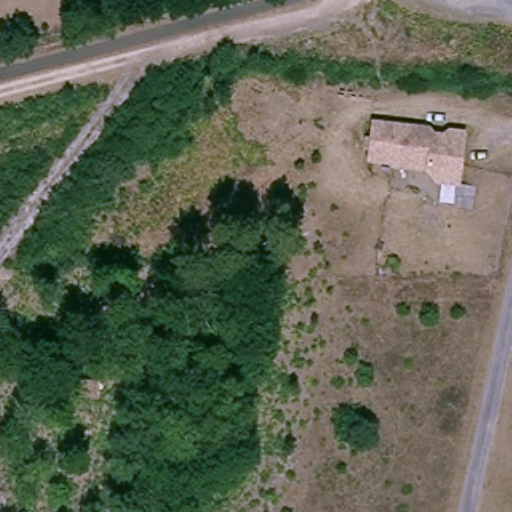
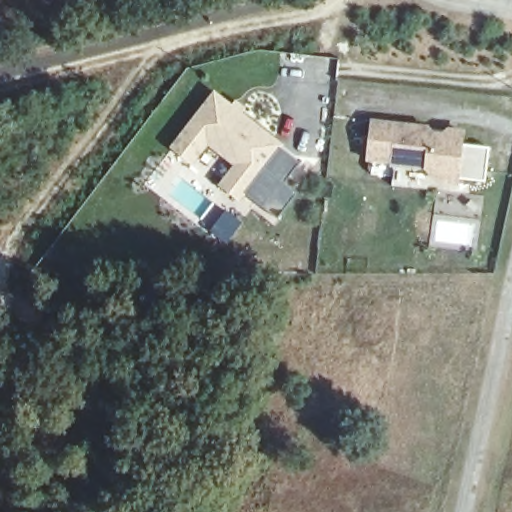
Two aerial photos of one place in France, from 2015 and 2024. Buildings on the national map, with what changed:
new [(220,182),(235,163),(208,143),(194,164),(171,146),(215,89),(284,142),(241,199),(220,182)]
unchanged [(457,183),(438,181),(428,169),(394,165),(394,162),(370,160),(374,123),(428,129),(449,131),(462,132),(457,183)]

